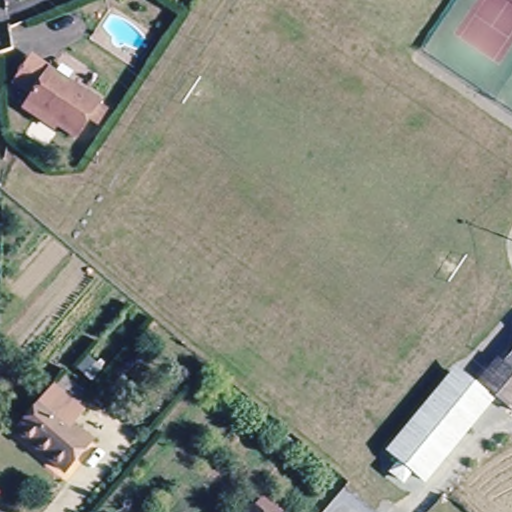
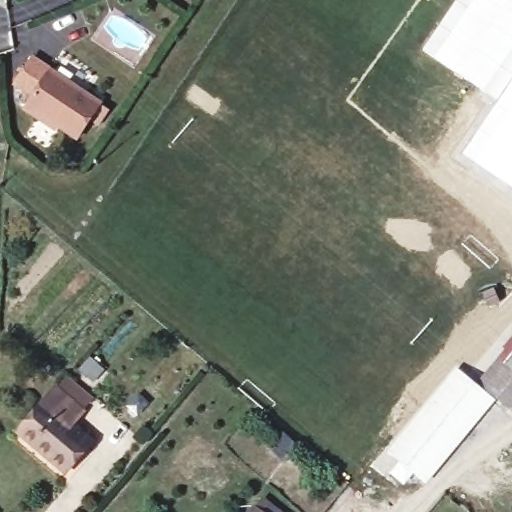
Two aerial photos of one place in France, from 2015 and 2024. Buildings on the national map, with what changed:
new [(512,0),(512,188),(459,154),(496,101),(420,50),(454,0),(512,0)]
unchanged [(98,124),(90,119),(77,138),(59,126),(56,130),(25,109),(33,97),(15,85),(32,59),(100,104),(99,106),(107,111),(98,124)]
unchanged [(480,377),(499,354),(505,359),(512,350),(512,404),(480,377)]
unchanged [(93,383),(79,372),(87,362),(101,374),(93,383)]
unchanged [(490,396),(422,475),(412,467),(405,477),(393,467),(401,458),(391,449),(459,369),(490,396)]
unchanged [(87,441),(61,472),(14,432),(51,388),(49,386),(59,376),(85,398),(76,409),(79,412),(68,424),(87,441)]
unchanged [(296,447),(285,460),(271,448),(282,435),(296,447)]
unchanged [(254,507),(256,509),(270,493),(292,512),(250,512),(254,507)]

